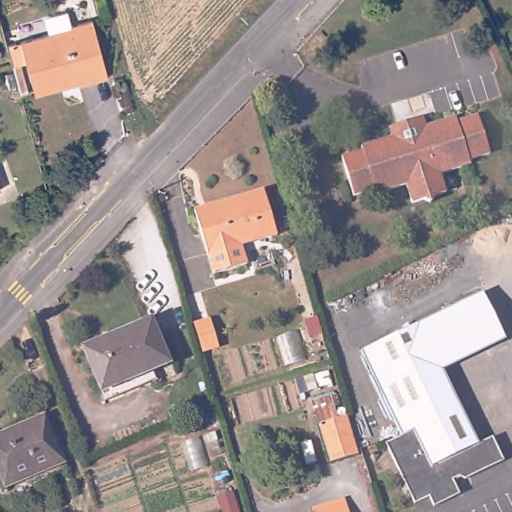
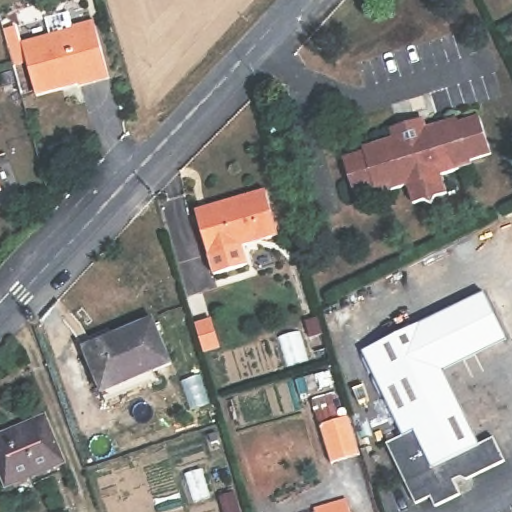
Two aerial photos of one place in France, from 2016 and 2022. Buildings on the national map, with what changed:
unchanged [(6,47),(69,29),(68,26),(93,19),(109,78),(80,86),(79,83),(35,95),(26,62),(12,66),(6,47)]
unchanged [(363,148),(362,144),(392,133),(390,127),(389,124),(397,121),(414,116),(423,112),(424,116),(426,121),(455,110),(457,114),(475,107),(488,146),(469,152),(470,156),(440,166),(446,187),(438,189),(434,201),(423,197),(413,201),(406,181),(376,192),(374,187),(354,194),(340,157),(363,148)]
unchanged [(0,194),(0,175),(6,192),(0,194)]
unchanged [(264,182),(279,227),(243,238),(249,257),(216,267),(195,204),(264,182)]
unchanged [(451,456),(434,422),(405,436),(362,354),(483,292),(506,338),(433,376),(452,412),(462,407),(479,442),(451,456)]
unchanged [(87,350),(151,321),(171,365),(108,395),(87,350)]
unchanged [(348,431),(353,445),(324,454),(312,416),(341,407),(348,431)]
unchanged [(0,434),(7,432),(5,427),(12,424),(14,428),(52,413),(72,467),(52,475),(49,470),(11,484),(0,457),(0,434)]
unchanged [(451,456),(479,442),(494,435),(507,460),(469,479),(462,476),(455,480),(463,495),(437,508),(431,497),(418,504),(388,445),(405,436),(434,422),(451,456)]
unchanged [(314,508),(345,500),(349,512),(316,512),(314,508)]
unchanged [(0,507),(2,512),(0,512),(0,507)]

